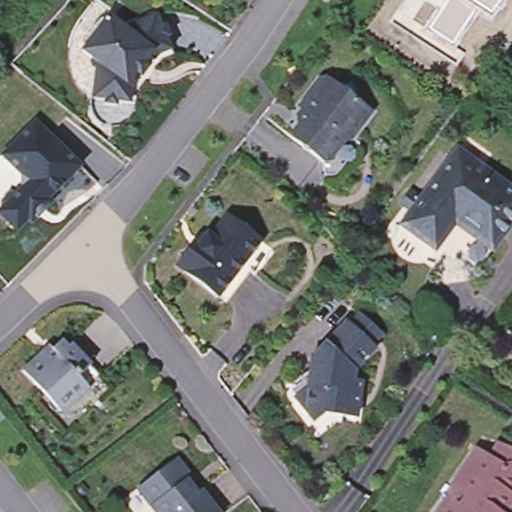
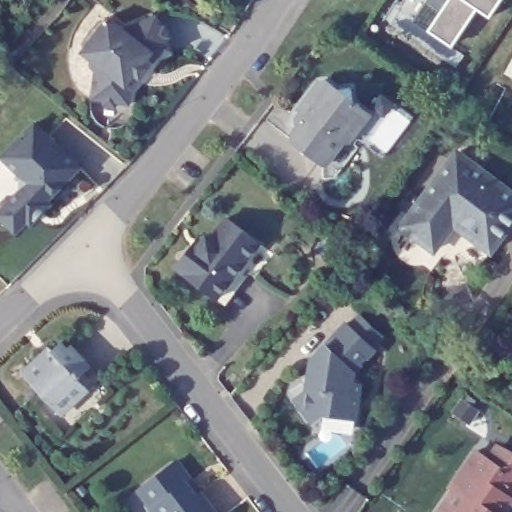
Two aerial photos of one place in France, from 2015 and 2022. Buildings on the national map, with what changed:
unchanged [(107,1),(124,13),(155,0),(171,35),(158,40),(153,46),(148,42),(131,65),(136,69),(131,75),(129,88),(116,87),(115,91),(103,89),(104,86),(91,84),(95,55),(90,52),(90,47),(91,44),(81,38),(107,1)]
unchanged [(488,17),(476,9),(450,47),(426,31),(439,12),(424,2),(425,0),(500,0),(488,17)]
unchanged [(333,171),(323,173),(322,158),(292,134),(291,131),(297,121),(295,113),(300,106),(297,105),(317,78),(325,76),(336,85),(349,83),(351,96),(369,110),(349,136),(357,141),(333,171)]
unchanged [(2,210),(2,204),(9,196),(15,196),(22,189),(22,177),(6,161),(2,157),(19,140),(35,123),(81,167),(48,201),(52,204),(48,208),(35,221),(32,225),(28,221),(17,233),(3,220),(0,217),(0,211),(2,210)]
unchanged [(457,217),(438,244),(406,220),(416,206),(460,147),(512,185),(512,220),(495,244),(477,231),(481,225),(466,214),(462,221),(457,217)]
unchanged [(481,225),(477,231),(495,244),(481,262),(462,248),(458,249),(457,251),(451,252),(445,250),(435,264),(427,258),(418,258),(410,256),(404,252),(398,244),(395,233),(388,229),(407,201),(416,206),(406,220),(438,244),(457,217),(462,221),(466,214),(481,225)]
unchanged [(268,247),(250,271),(241,264),(216,296),(172,261),(198,228),(206,234),(222,212),(268,247)]
unchanged [(345,321),(355,310),(377,330),(367,341),(370,344),(350,365),(348,377),(357,378),(351,412),(321,408),(309,416),(293,392),(304,384),(296,372),(305,367),(307,351),(310,351),(320,340),(341,317),(345,321)]
unchanged [(51,347),(53,350),(62,342),(68,348),(72,345),(87,362),(75,373),(88,387),(61,413),(23,373),(51,347)]
unchanged [(6,421),(0,425),(0,414),(6,421)]
unchanged [(454,512),(464,495),(461,493),(484,455),(491,443),(512,452),(512,511),(512,512),(454,512)]
unchanged [(177,458),(185,458),(195,471),(206,485),(226,512),(165,512),(144,484),(177,458)]

